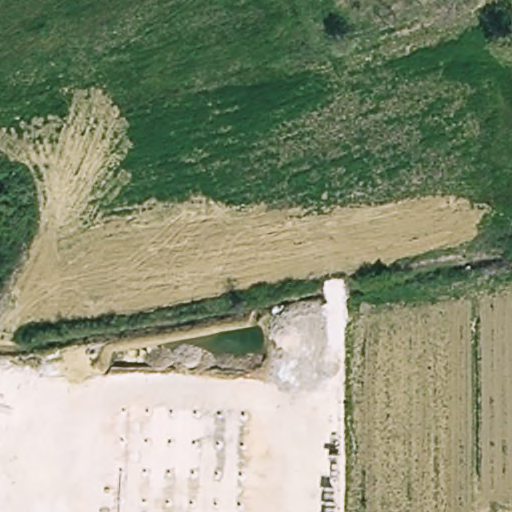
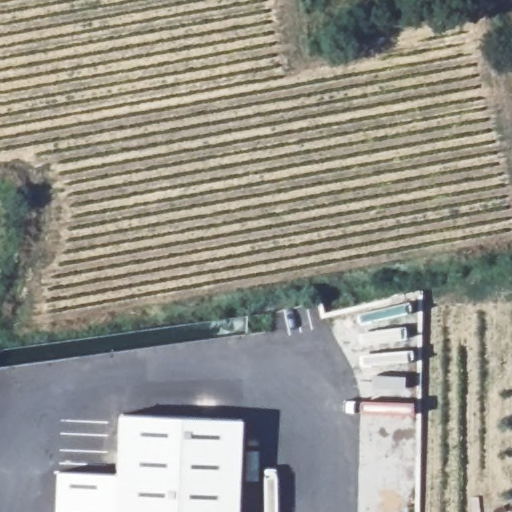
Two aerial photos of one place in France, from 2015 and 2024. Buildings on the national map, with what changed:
new [(121,414),(244,420),(240,512),(117,512),(121,414)]
new [(117,512),(58,512),(60,471),(118,473),(117,512)]

